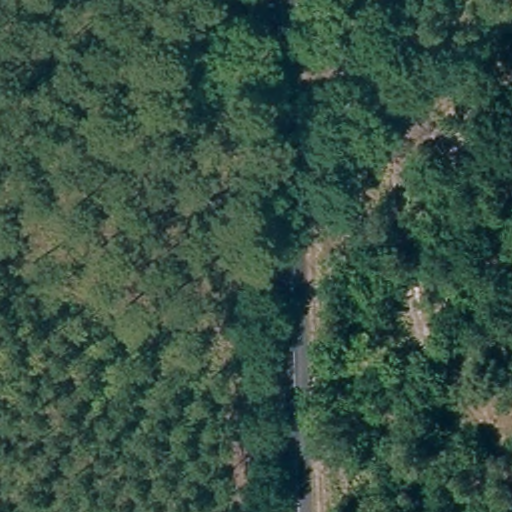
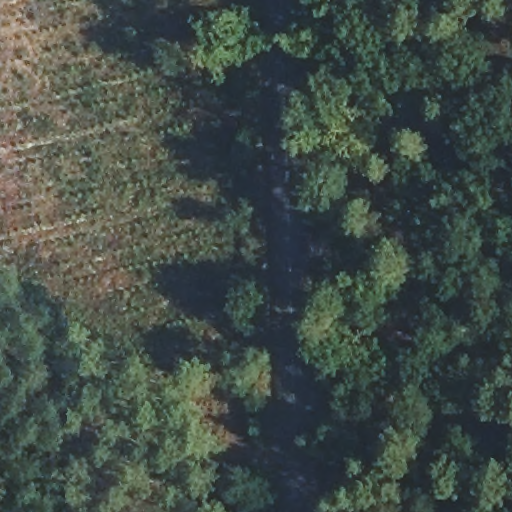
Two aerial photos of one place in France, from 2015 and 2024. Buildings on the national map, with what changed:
unchanged [(269,394),(268,405),(258,406),(259,393),(269,394)]

